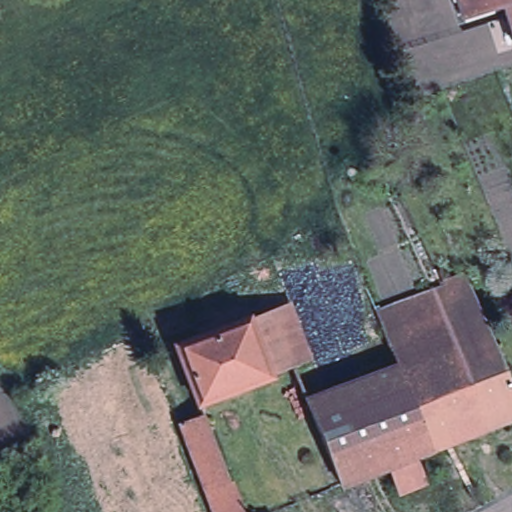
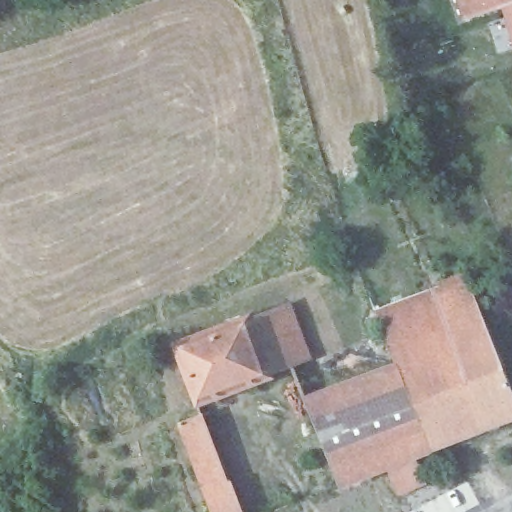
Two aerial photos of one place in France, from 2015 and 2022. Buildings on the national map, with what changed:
unchanged [(456,0),(498,0),(500,4),(501,7),(470,19),(463,21),(457,2),(456,0)]
unchanged [(500,4),(498,0),(510,0),(500,4)]
unchanged [(510,0),(512,0),(512,21),(506,22),(501,7),(500,4),(510,0)]
unchanged [(512,21),(512,39),(506,22),(512,21)]
unchanged [(481,427),(460,435),(415,318),(377,332),(376,330),(369,312),(439,286),(437,282),(462,272),(471,297),(478,315),(512,402),(512,415),(481,427)]
unchanged [(259,293),(267,313),(284,307),(307,366),(269,379),(247,321),(239,301),(259,293)]
unchanged [(415,318),(460,435),(425,448),(390,362),(377,332),(415,318)]
unchanged [(270,382),(197,412),(173,351),(247,321),(269,379),(270,382)]
unchanged [(394,493),(382,465),(355,475),(317,390),(390,362),(425,448),(411,454),(422,482),(394,493)]
unchanged [(317,390),(355,475),(334,485),(297,398),(317,390)]
unchanged [(179,425),(200,417),(226,484),(204,492),(179,425)]
unchanged [(229,482),(240,512),(212,512),(204,492),(226,484),(229,482)]

